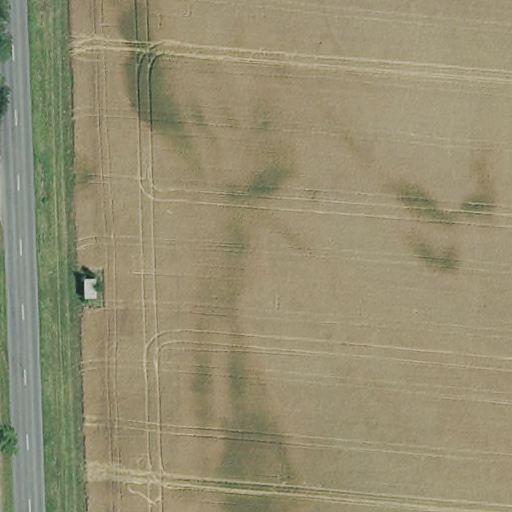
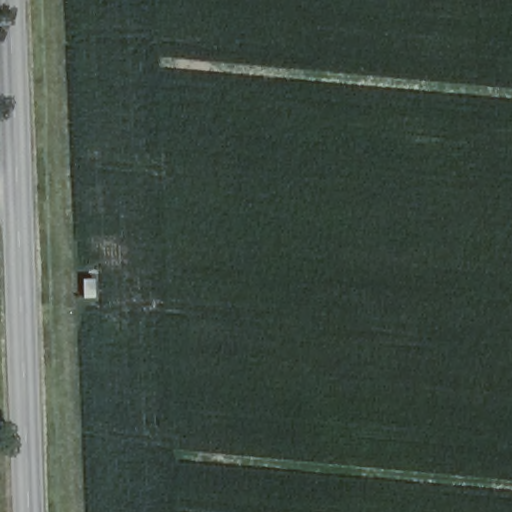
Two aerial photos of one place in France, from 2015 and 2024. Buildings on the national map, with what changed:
unchanged [(97,291),(85,291),(86,273),(98,273),(97,291)]

